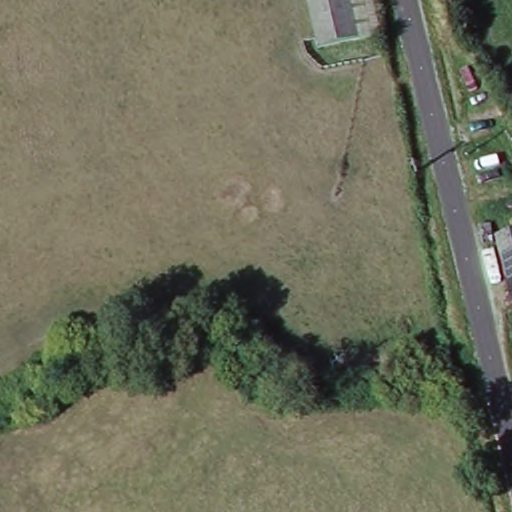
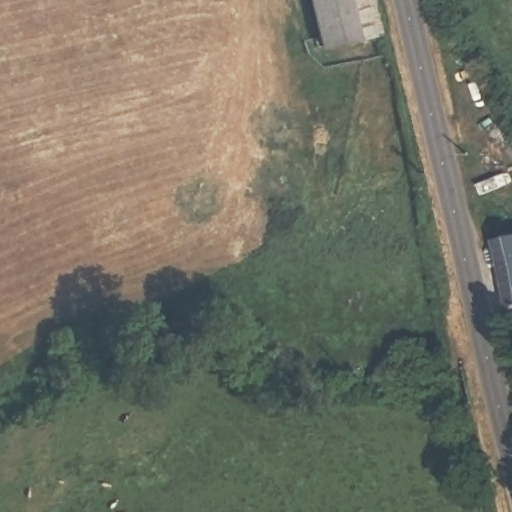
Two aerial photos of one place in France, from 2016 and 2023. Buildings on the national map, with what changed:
unchanged [(358,48),(322,56),(307,0),(347,0),(358,48)]
unchanged [(381,43),(358,48),(347,0),(372,0),(381,43)]
unchanged [(491,239),(512,233),(512,310),(491,239)]

